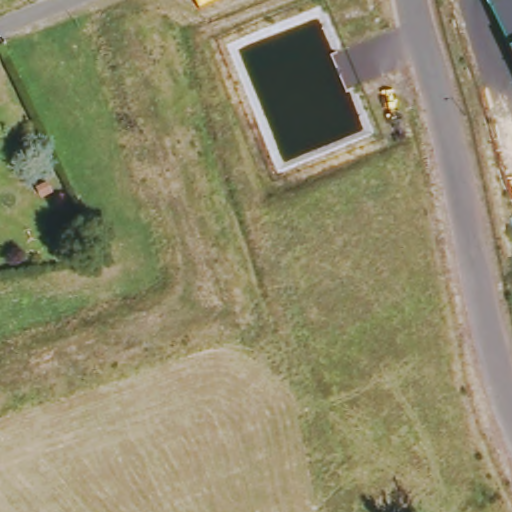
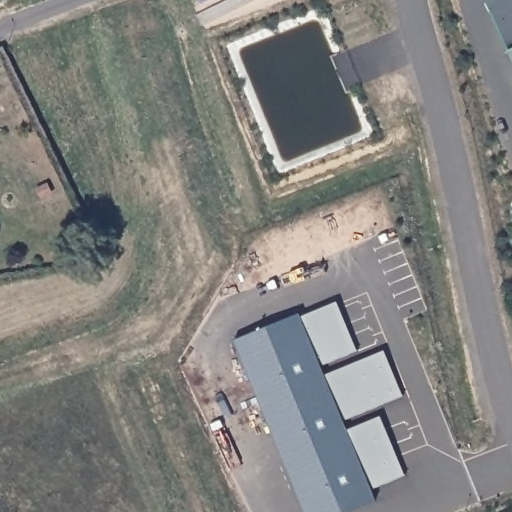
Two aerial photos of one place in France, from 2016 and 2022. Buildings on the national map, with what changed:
unchanged [(489,5),(500,0),(512,0),(512,55),(511,53),(489,5)]
new [(347,512),(305,512),(235,341),(299,314),(301,318),(339,302),(359,351),(320,365),(325,376),(386,351),(404,396),(343,422),(347,431),(381,417),(406,475),(371,490),(375,500),(347,512)]

